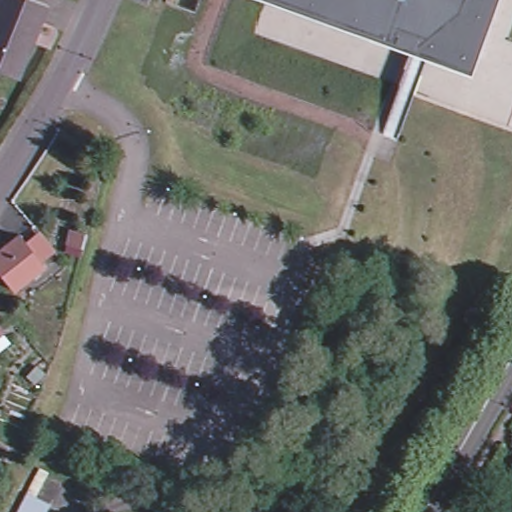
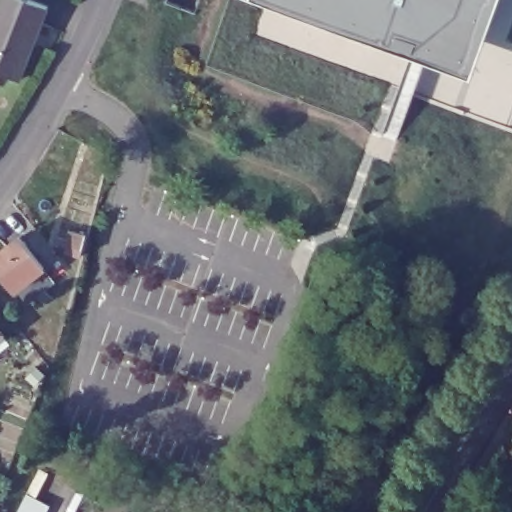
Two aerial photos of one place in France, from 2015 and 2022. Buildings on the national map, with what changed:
unchanged [(43,20),(19,80),(0,72),(0,11),(3,4),(5,0),(23,0),(48,10),(43,20)]
unchanged [(417,32),(412,47),(377,34),(378,31),(368,28),(366,34),(279,3),(273,0),(474,0),(457,47),(417,32)]
unchanged [(0,259),(0,250),(24,229),(50,259),(20,283),(0,259)]
unchanged [(4,331),(0,335),(0,326),(4,331)]
unchanged [(27,494),(50,506),(47,512),(18,512),(27,494)]

